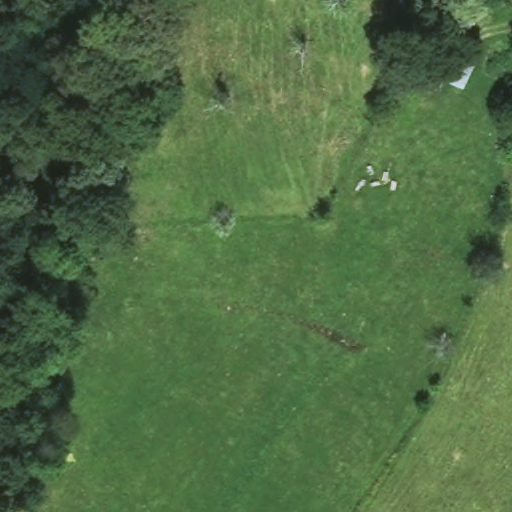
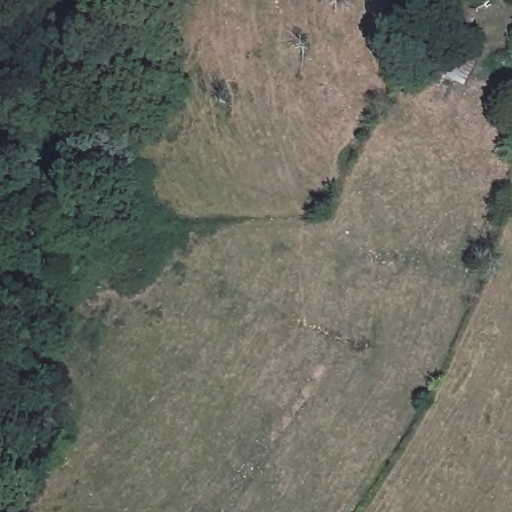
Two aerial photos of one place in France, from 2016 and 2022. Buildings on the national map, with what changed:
unchanged [(445,0),(462,0),(473,4),(455,45),(470,57),(460,87),(436,77),(431,89),(412,78),(445,0)]

